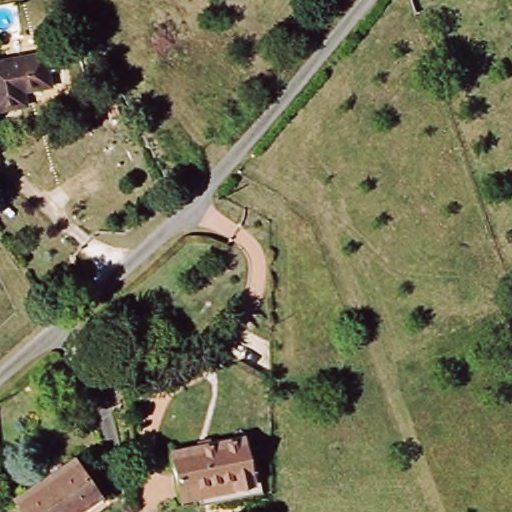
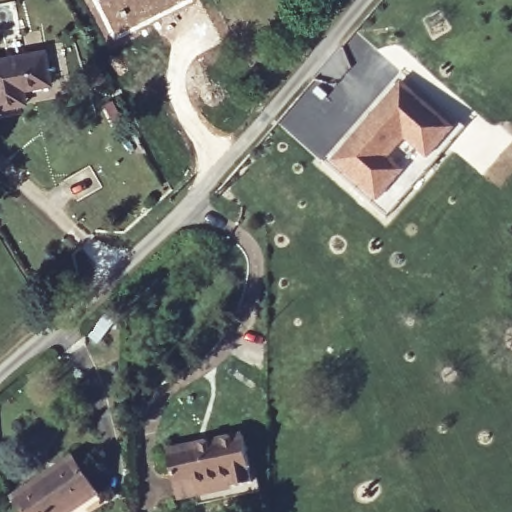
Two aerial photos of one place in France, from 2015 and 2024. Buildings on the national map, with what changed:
unchanged [(12,115),(0,116),(0,62),(52,52),(60,89),(28,94),(30,112),(12,115)]
new [(396,86),(450,132),(422,162),(400,142),(383,160),(398,174),(372,204),(327,165),(396,86)]
unchanged [(257,488),(211,502),(208,492),(180,498),(166,456),(197,447),(197,448),(241,437),(257,488)]
unchanged [(13,496),(70,452),(94,486),(57,512),(24,512),(13,496)]
unchanged [(94,486),(105,502),(92,512),(57,512),(94,486)]

